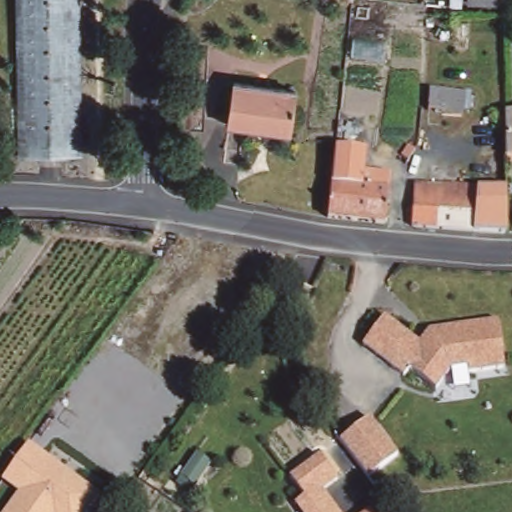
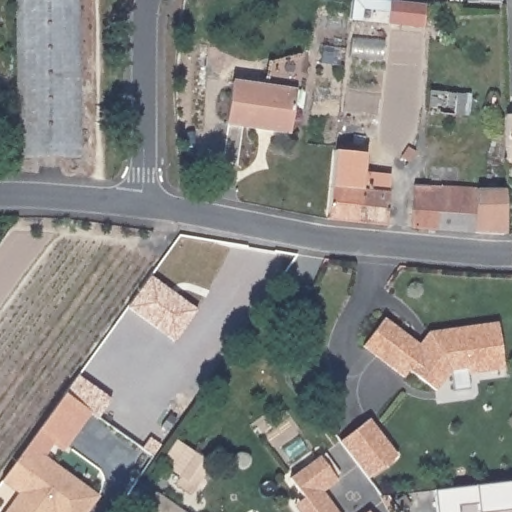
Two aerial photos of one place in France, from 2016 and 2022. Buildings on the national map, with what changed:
unchanged [(83,158),(20,159),(18,0),(84,0),(83,158)]
unchanged [(505,2),(472,2),(473,0),(506,0),(505,2)]
unchanged [(443,9),(442,30),(432,29),(433,8),(443,9)]
unchanged [(294,90),(288,133),(225,125),(231,82),(294,90)]
unchanged [(469,95),(468,119),(433,117),(435,93),(469,95)]
unchanged [(512,118),(512,158),(508,158),(508,126),(508,118),(512,118)]
unchanged [(370,146),(369,167),(394,170),(393,189),(364,187),(362,224),(331,220),(330,216),(337,143),(370,146)]
unchanged [(495,186),(495,199),(479,197),(479,212),(418,208),(421,181),(495,186)]
unchanged [(479,212),(479,197),(495,199),(495,186),(508,186),(508,233),(417,229),(418,208),(479,212)]
unchanged [(393,189),(390,227),(362,224),(364,187),(393,189)]
new [(128,307),(151,276),(197,309),(174,340),(128,307)]
unchanged [(414,341),(421,328),(493,317),(500,362),(460,370),(458,365),(441,367),(431,387),(409,374),(401,362),(396,370),(357,343),(379,314),(414,341)]
new [(110,399),(97,416),(89,412),(65,446),(62,450),(52,443),(43,457),(27,446),(39,428),(64,394),(78,375),(110,399)]
unchanged [(371,420),(397,454),(363,483),(337,445),(371,420)]
new [(211,463),(198,482),(157,466),(176,438),(211,463)]
unchanged [(87,512),(4,512),(16,495),(0,484),(0,483),(27,446),(99,495),(87,512)]
unchanged [(320,487),(336,512),(298,512),(290,501),(298,494),(285,471),(314,451),(331,479),(320,487)]
new [(512,510),(496,512),(479,512),(478,504),(458,506),(459,512),(437,512),(434,490),(512,481),(512,510)]
unchanged [(372,512),(353,512),(366,503),(372,512)]

